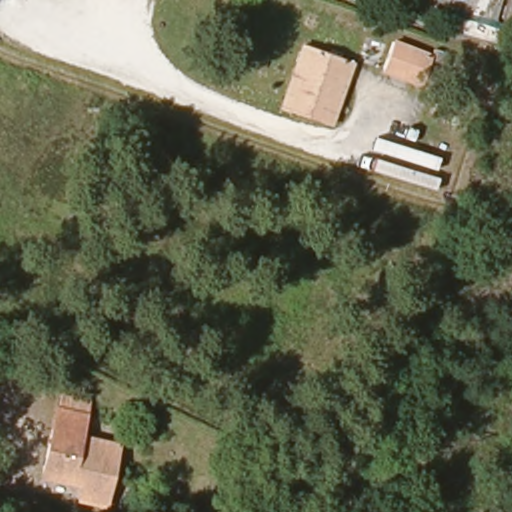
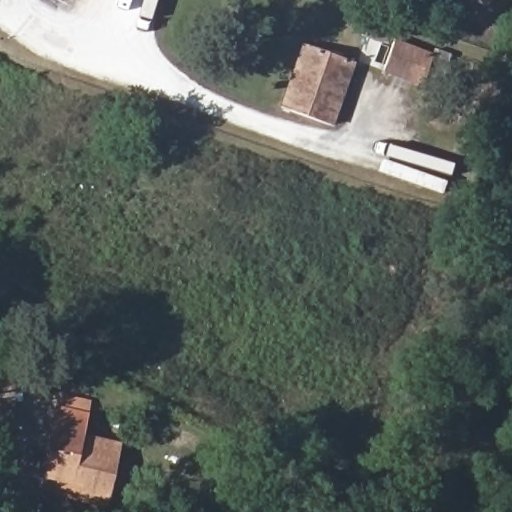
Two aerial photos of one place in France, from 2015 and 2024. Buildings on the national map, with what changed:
unchanged [(446,19),(452,0),(512,0),(512,29),(505,28),(499,45),(458,34),(458,23),(446,19)]
unchanged [(396,70),(405,44),(445,59),(436,84),(396,70)]
unchanged [(308,46),(356,64),(334,126),(295,113),(285,109),(298,71),(308,46)]
unchanged [(109,501),(81,495),(83,483),(42,474),(59,407),(87,413),(82,434),(120,442),(109,501)]

